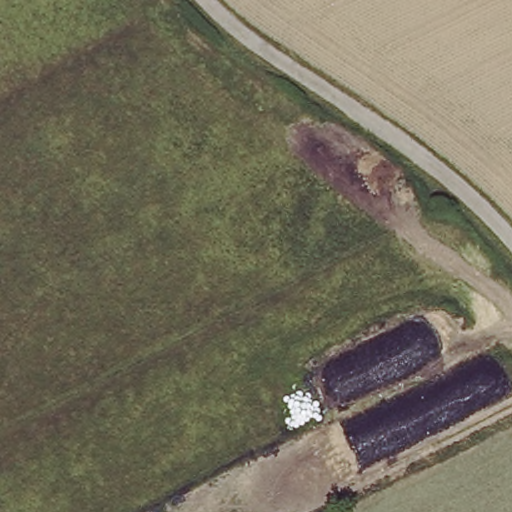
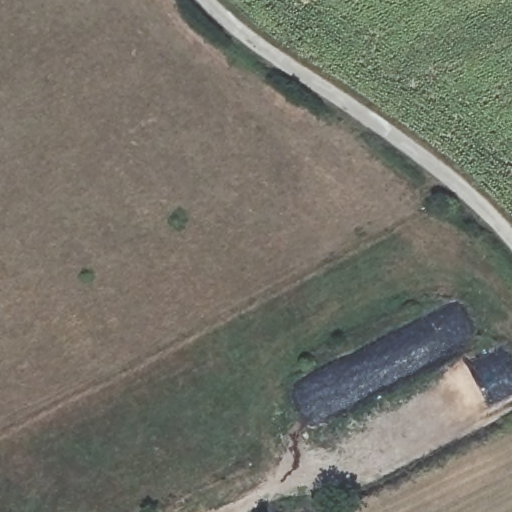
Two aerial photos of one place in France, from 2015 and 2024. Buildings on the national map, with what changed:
[]

